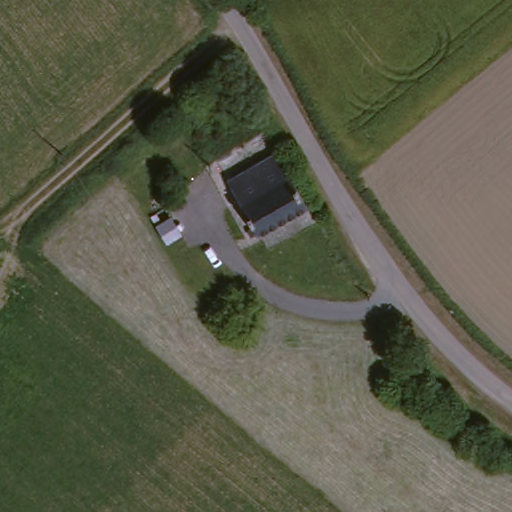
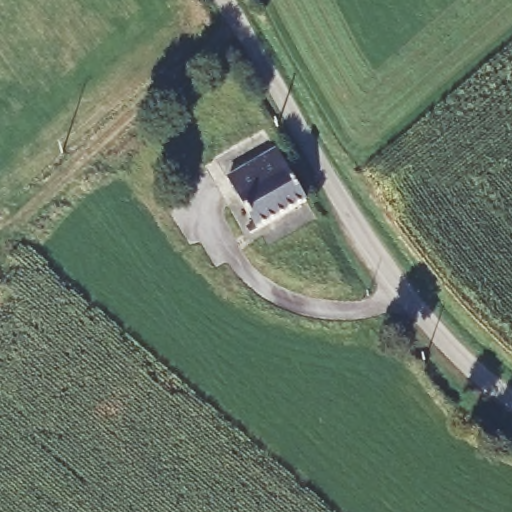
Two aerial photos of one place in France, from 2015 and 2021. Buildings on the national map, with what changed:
unchanged [(305,205),(261,232),(260,233),(227,182),(274,152),(305,205)]

